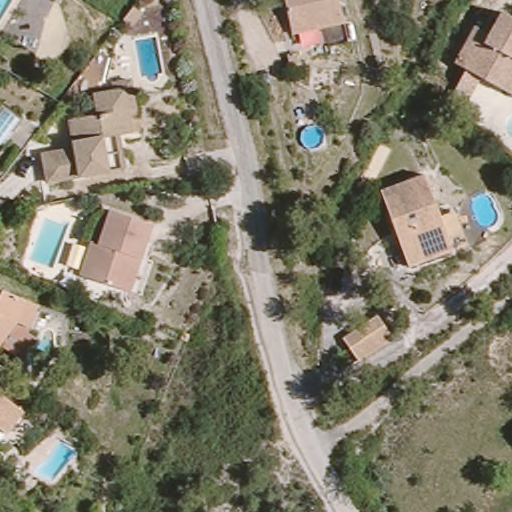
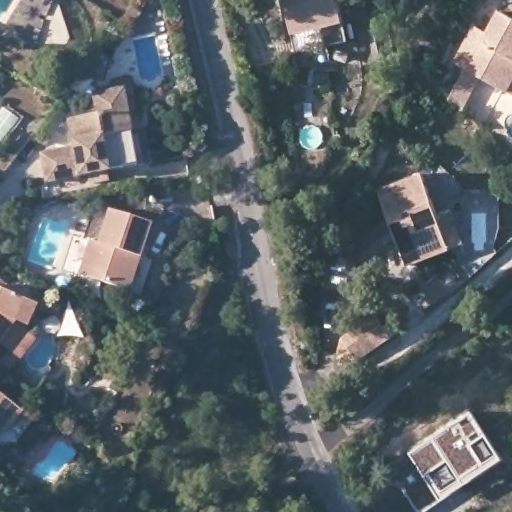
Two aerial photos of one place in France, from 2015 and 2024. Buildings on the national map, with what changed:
unchanged [(340,27),(292,38),(283,0),(334,0),(340,27)]
unchanged [(469,71),(458,66),(478,30),(494,39),(507,16),(512,19),(512,96),(482,79),(465,107),(452,99),(469,71)]
unchanged [(42,181),(38,154),(70,147),(66,121),(72,120),(93,116),(90,95),(114,92),(112,85),(131,82),(137,120),(126,122),(128,132),(117,135),(121,167),(104,171),(42,181)]
unchanged [(462,246),(451,251),(409,267),(379,196),(422,177),(436,214),(448,210),(462,246)]
unchanged [(97,249),(108,216),(150,229),(139,262),(144,264),(133,298),(79,282),(89,247),(97,249)]
unchanged [(41,306),(32,327),(18,322),(0,345),(0,289),(41,306)]
unchanged [(341,345),(374,322),(389,342),(354,366),(341,345)]
unchanged [(23,412),(5,433),(0,430),(0,394),(23,412)]
new [(409,455),(472,412),(505,462),(444,503),(440,500),(423,512),(418,512),(398,480),(415,463),(409,455)]

